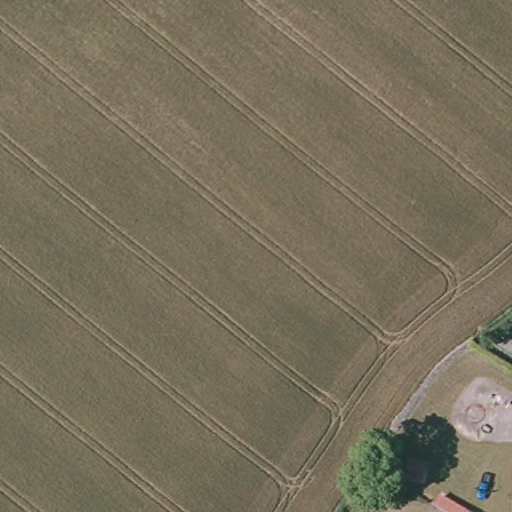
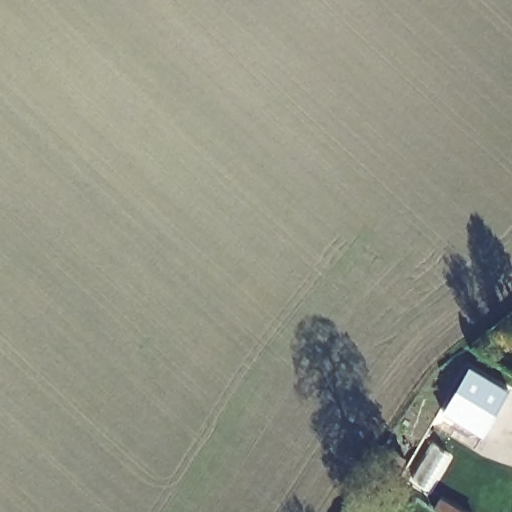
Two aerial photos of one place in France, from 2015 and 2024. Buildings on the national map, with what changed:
new [(443,413),(471,365),(511,389),(483,436),(443,413)]
unchanged [(444,505),(455,512),(440,512),(444,505)]

